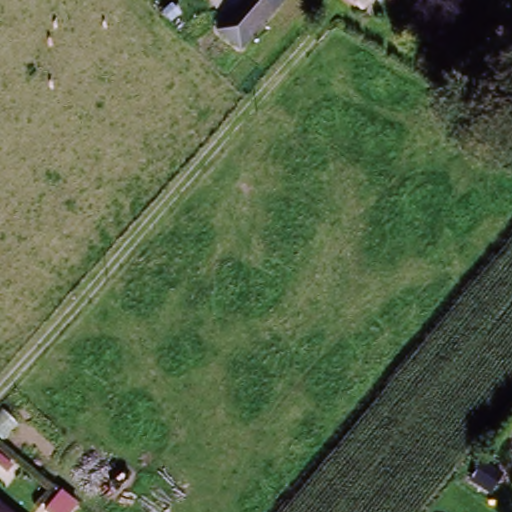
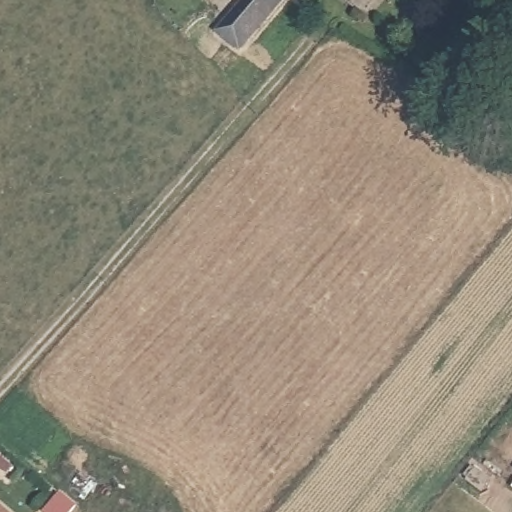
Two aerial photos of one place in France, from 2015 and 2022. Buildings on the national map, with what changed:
unchanged [(212,25),(236,0),(285,0),(240,49),(212,25)]
unchanged [(367,8),(357,0),(374,0),(367,8)]
unchanged [(69,512),(43,512),(57,494),(73,507),(69,512)]

